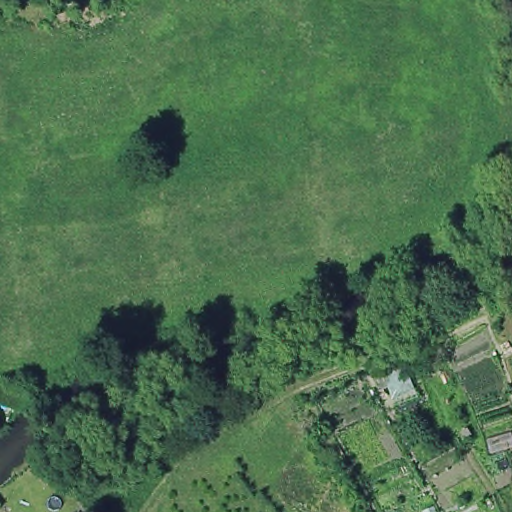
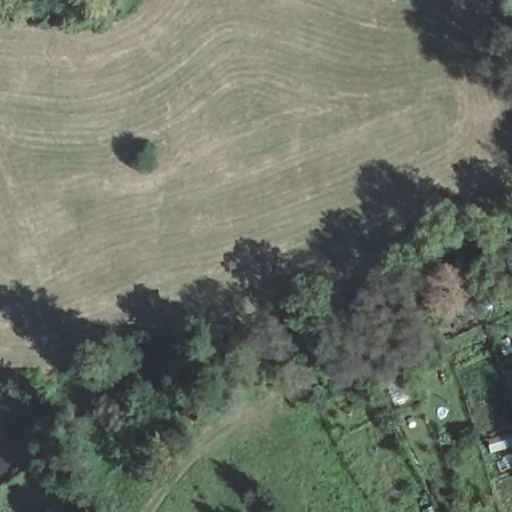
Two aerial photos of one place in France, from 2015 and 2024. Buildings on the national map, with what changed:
unchanged [(407,365),(418,391),(389,402),(379,375),(407,365)]
unchanged [(30,392),(25,407),(22,410),(0,402),(0,388),(1,385),(30,392)]

